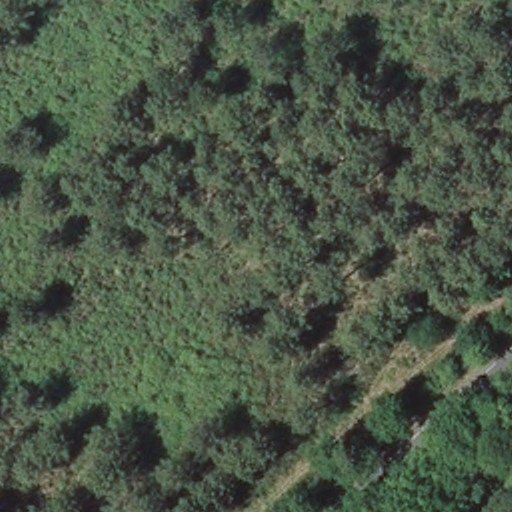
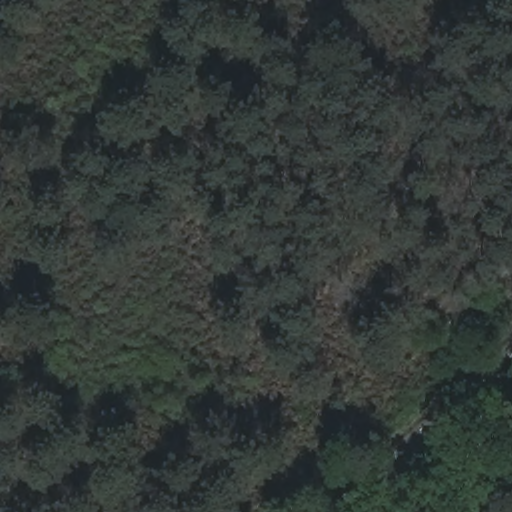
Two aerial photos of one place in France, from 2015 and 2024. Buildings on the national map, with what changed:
[]

